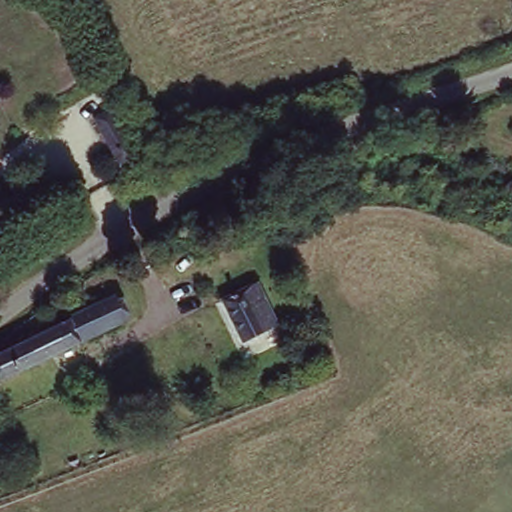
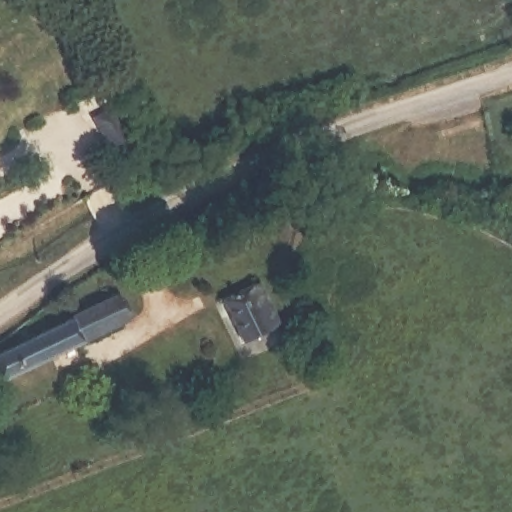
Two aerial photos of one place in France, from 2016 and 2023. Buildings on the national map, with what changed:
unchanged [(136,149),(116,159),(110,149),(85,104),(99,97),(124,140),(129,138),(136,149)]
unchanged [(257,285),(274,324),(243,339),(224,301),(257,285)]
unchanged [(119,314),(78,335),(0,377),(0,348),(108,291),(119,314)]

